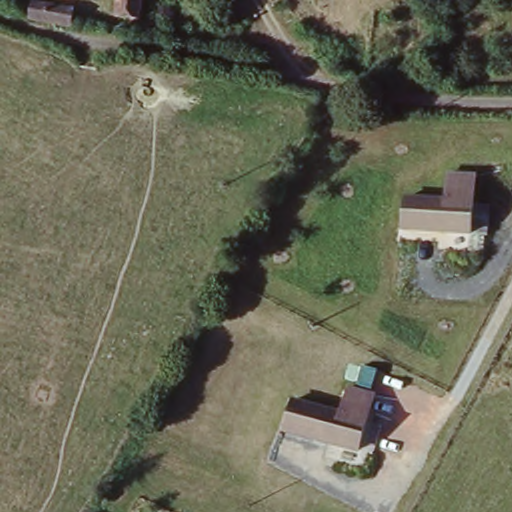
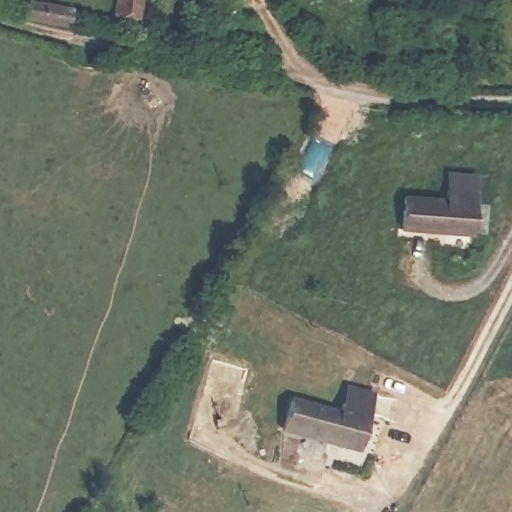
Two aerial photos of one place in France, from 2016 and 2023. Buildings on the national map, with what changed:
unchanged [(34,0),(71,7),(70,17),(66,30),(22,21),(27,0),(34,0)]
unchanged [(141,0),(139,25),(115,22),(117,0),(141,0)]
unchanged [(404,192),(444,196),(445,173),(475,175),(471,236),(400,230),(404,192)]
unchanged [(293,397),(341,409),(347,387),(374,394),(357,452),(281,432),(293,397)]

